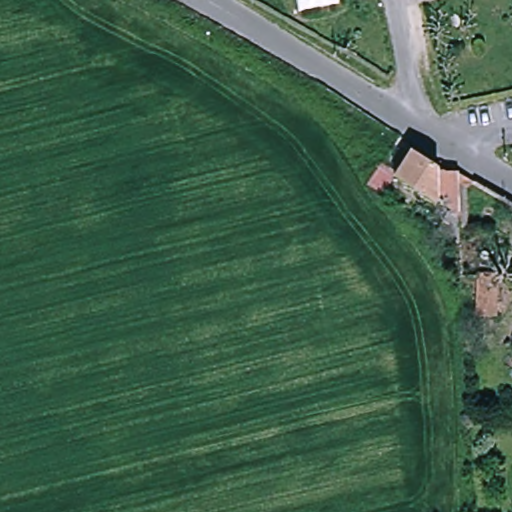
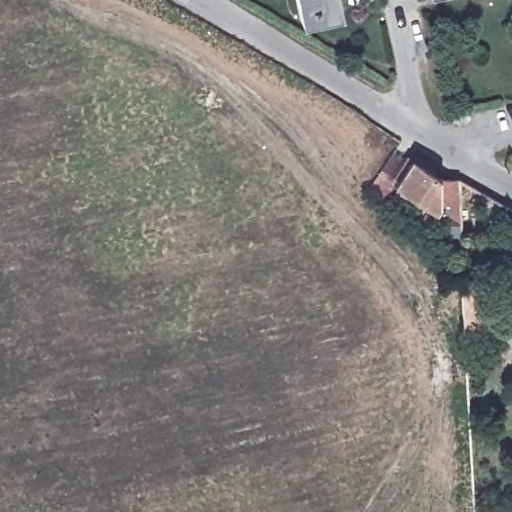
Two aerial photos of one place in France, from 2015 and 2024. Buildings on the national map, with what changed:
unchanged [(343,8),(309,14),(306,0),(341,0),(343,8)]
unchanged [(446,214),(399,187),(389,204),(368,192),(384,168),(397,170),(410,152),(421,156),(447,178),(448,196),(464,198),(464,251),(438,243),(446,214)]
unchanged [(499,281),(499,320),(478,320),(479,281),(499,281)]

